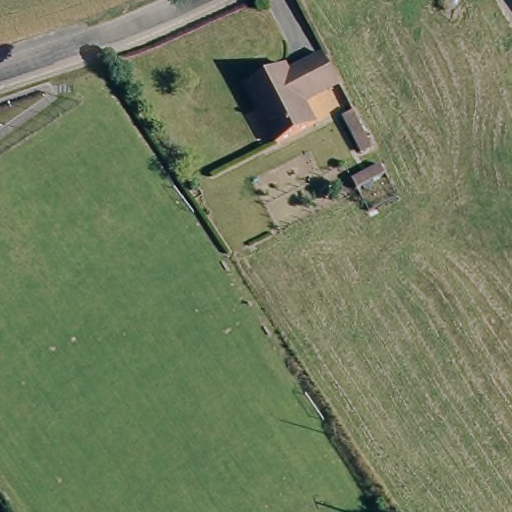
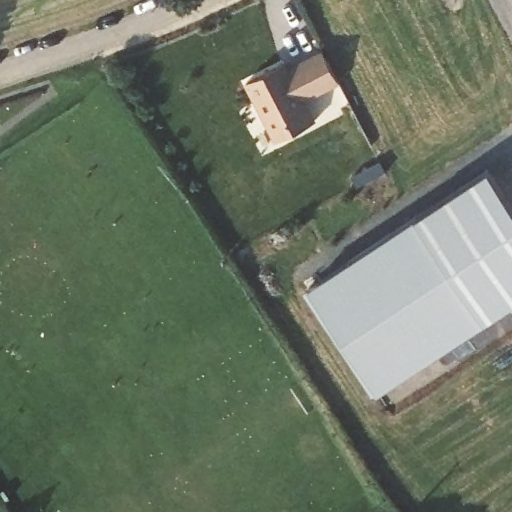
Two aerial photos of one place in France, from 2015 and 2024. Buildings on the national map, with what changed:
unchanged [(317,119),(278,139),(247,80),(286,58),(290,66),(326,44),(344,79),(307,97),(317,119)]
unchanged [(363,96),(382,131),(373,135),(355,99),(363,96)]
unchanged [(391,146),(396,156),(371,170),(365,160),(391,146)]
new [(512,206),(512,306),(377,394),(307,288),(488,169),(512,206)]

